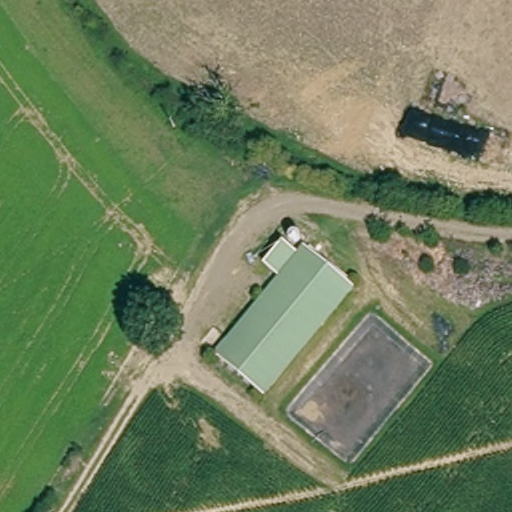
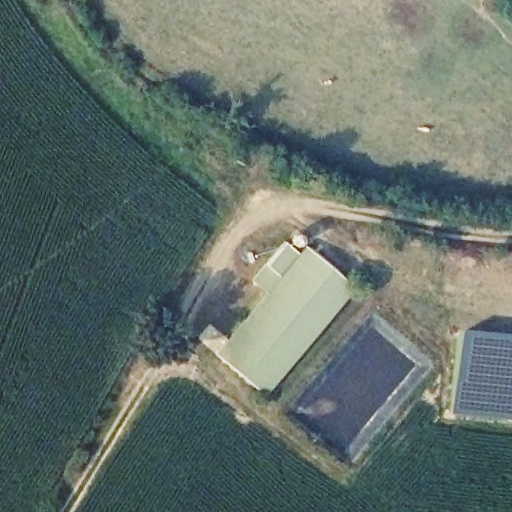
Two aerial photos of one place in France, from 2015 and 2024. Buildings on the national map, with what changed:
unchanged [(263,397),(215,357),(280,280),(265,267),(284,244),(300,257),(306,249),(354,289),(263,397)]
new [(450,416),(459,335),(512,340),(512,422),(450,416)]

